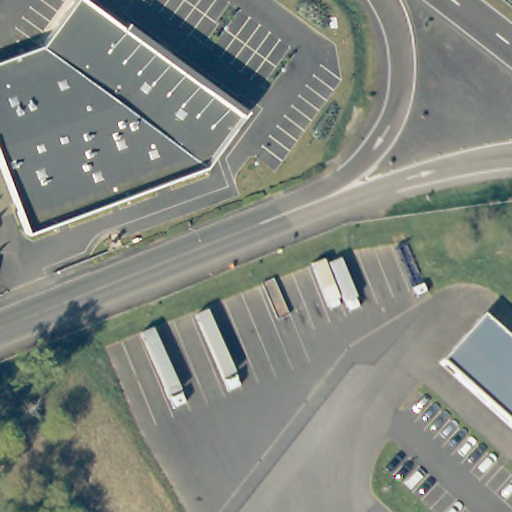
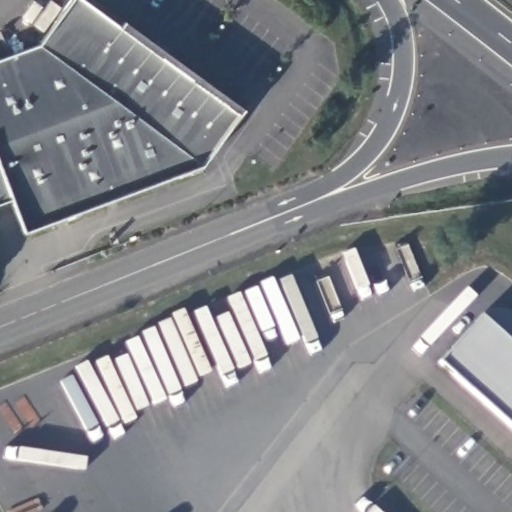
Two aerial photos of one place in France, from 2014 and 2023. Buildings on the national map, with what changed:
unchanged [(23,231),(0,173),(0,59),(36,46),(74,0),(81,0),(236,115),(201,165),(23,231)]
unchanged [(480,315),(512,344),(512,425),(440,359),(480,315)]

